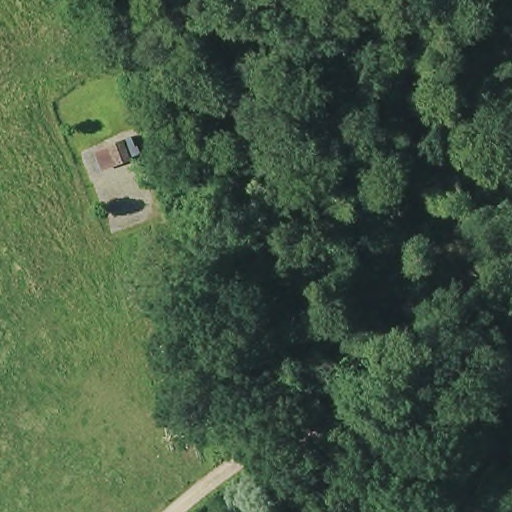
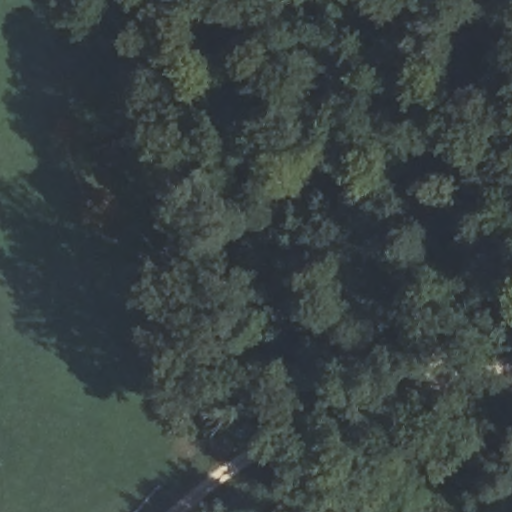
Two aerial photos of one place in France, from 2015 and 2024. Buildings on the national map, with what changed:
unchanged [(126,139),(131,161),(104,170),(96,149),(126,139)]

